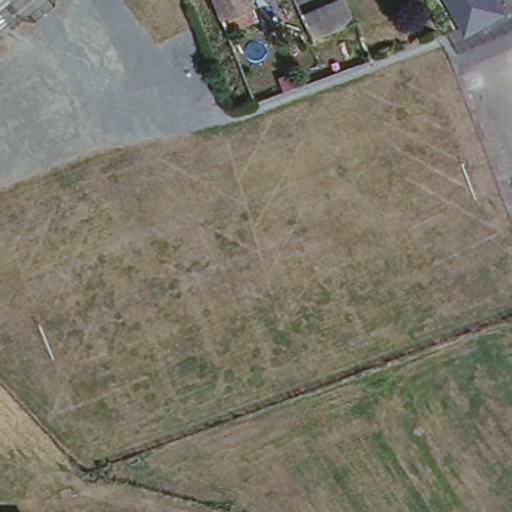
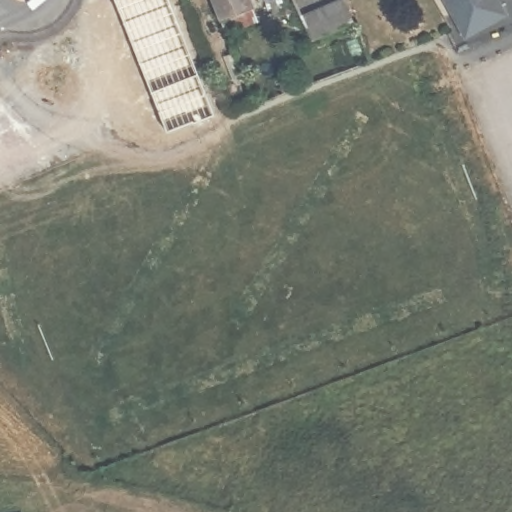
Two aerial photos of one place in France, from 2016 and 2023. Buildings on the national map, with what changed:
new [(214,117),(167,134),(114,0),(167,0),(214,117)]
unchanged [(226,29),(222,19),(214,0),(251,0),(254,6),(257,16),(226,29)]
unchanged [(260,2),(259,0),(267,0),(260,2)]
unchanged [(343,0),(344,0),(353,24),(311,41),(300,16),(343,0)]
unchanged [(495,4),(501,15),(464,40),(437,0),(502,0),(495,4)]
demolished [(186,116),(151,129),(139,97),(174,82),(186,116)]

